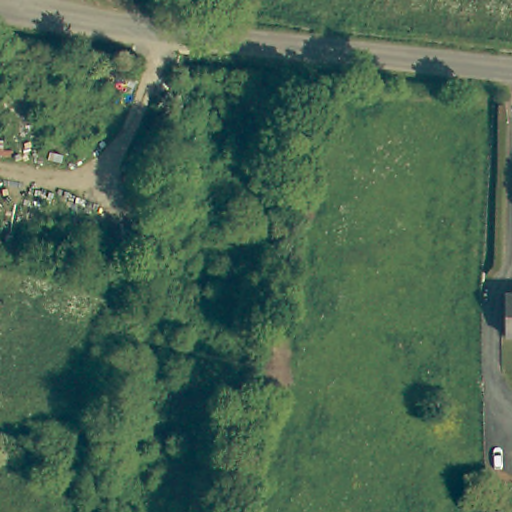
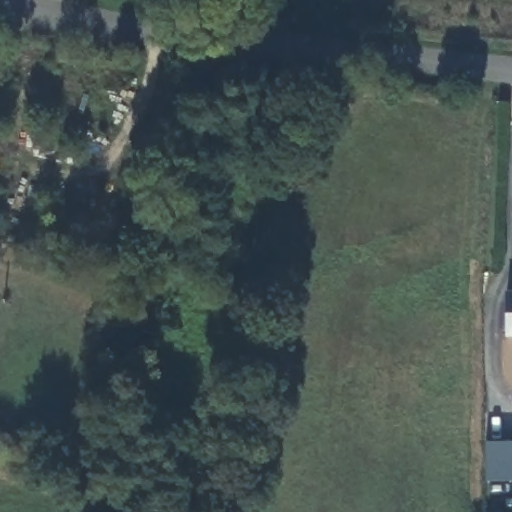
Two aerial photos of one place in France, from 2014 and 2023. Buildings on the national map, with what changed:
unchanged [(512,293),(512,334),(506,333),(506,292),(512,293)]
new [(512,481),(485,482),(485,443),(512,442),(512,481)]

